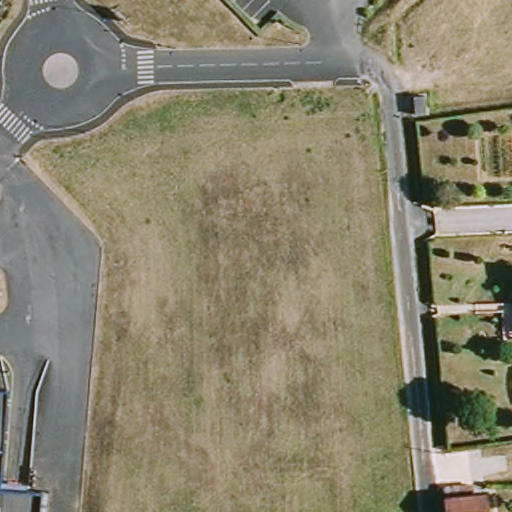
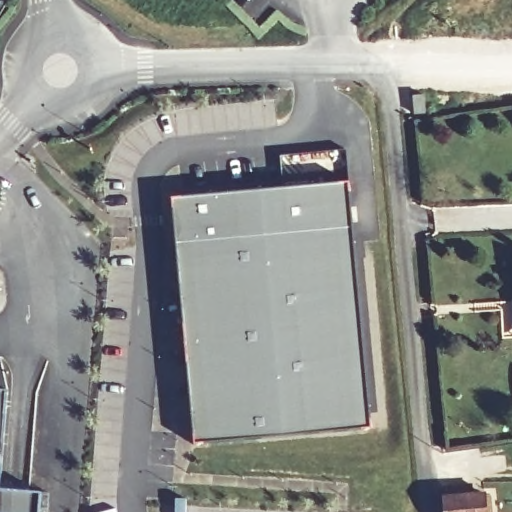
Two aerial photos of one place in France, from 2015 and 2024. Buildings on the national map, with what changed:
unchanged [(405,94),(417,93),(417,111),(407,112),(405,94)]
new [(349,183),(372,429),(196,444),(172,199),(349,183)]
unchanged [(0,488),(41,491),(40,512),(0,512),(0,388),(9,389),(0,488)]
unchanged [(483,512),(442,512),(441,497),(440,487),(462,484),(464,494),(482,494),(483,512)]

